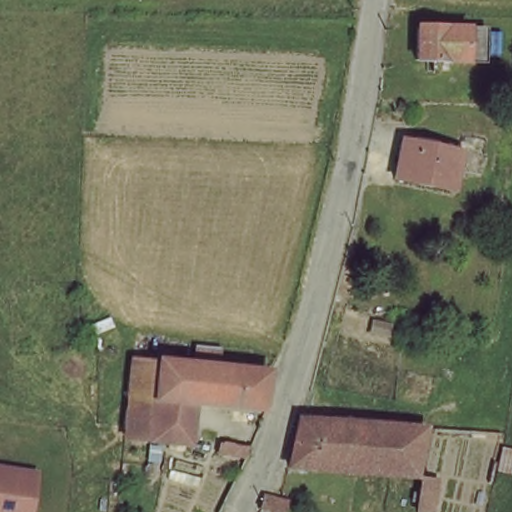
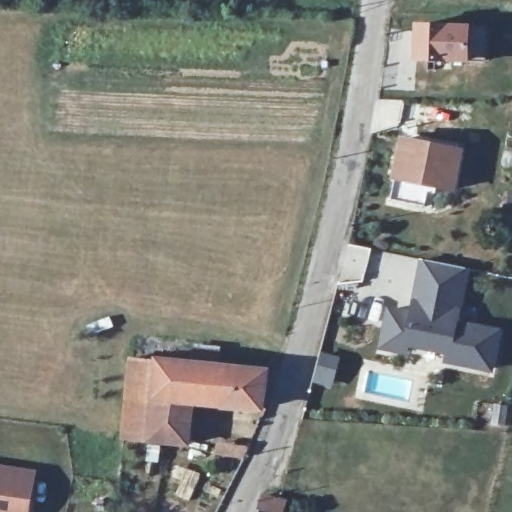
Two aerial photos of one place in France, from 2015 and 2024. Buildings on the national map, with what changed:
unchanged [(424,23),(488,26),(489,51),(450,50),(449,67),(421,67),(424,23)]
unchanged [(405,141),(457,150),(451,186),(398,178),(405,141)]
new [(469,269),(460,322),(502,329),(495,374),(444,364),(445,354),(410,348),(410,356),(378,350),(387,306),(411,310),(420,259),(469,269)]
unchanged [(144,437),(114,435),(125,352),(153,354),(144,437)]
unchanged [(273,364),(263,404),(192,403),(189,440),(144,437),(153,354),(273,364)]
demolished [(319,427),(312,474),(284,473),(286,468),(297,440),(302,426),(319,427)]
demolished [(429,435),(425,479),(360,476),(326,475),(312,474),(319,427),(374,431),(373,453),(399,454),(400,433),(429,435)]
unchanged [(246,448),(214,447),(215,432),(253,435),(246,448)]
unchanged [(28,512),(0,512),(0,466),(33,471),(28,512)]
unchanged [(292,498),(290,512),(268,512),(269,497),(292,498)]

